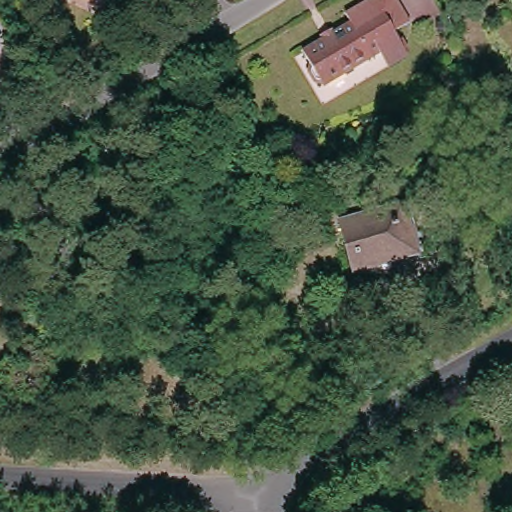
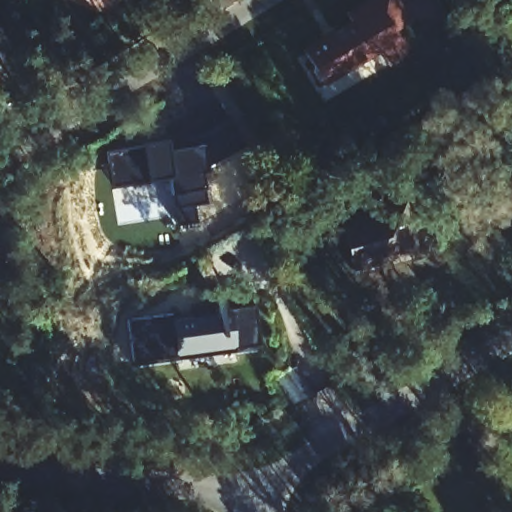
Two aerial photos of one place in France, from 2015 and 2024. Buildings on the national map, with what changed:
unchanged [(407,18),(394,25),(408,49),(386,63),(378,48),(324,79),(321,75),(313,74),(306,59),(308,52),(303,43),(350,15),(344,4),(352,0),(397,0),(407,18)]
new [(104,155),(141,148),(141,144),(166,139),(168,149),(190,145),(226,120),(241,148),(203,171),(209,203),(194,205),(198,223),(176,225),(168,191),(166,179),(111,189),(104,155)]
unchanged [(354,264),(341,220),(403,203),(414,248),(354,264)]
new [(136,359),(128,313),(173,306),(173,313),(220,306),(219,302),(256,296),(262,340),(136,359)]
new [(313,397),(289,410),(272,380),(295,366),(313,397)]

